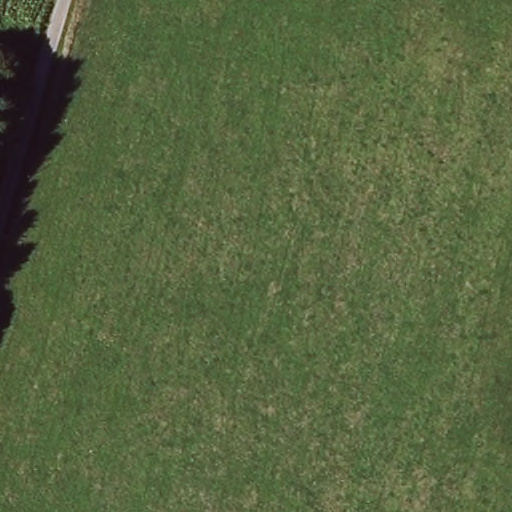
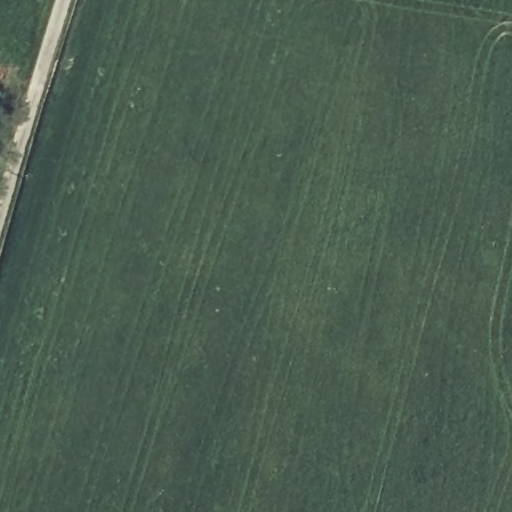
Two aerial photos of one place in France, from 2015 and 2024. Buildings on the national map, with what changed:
[]

